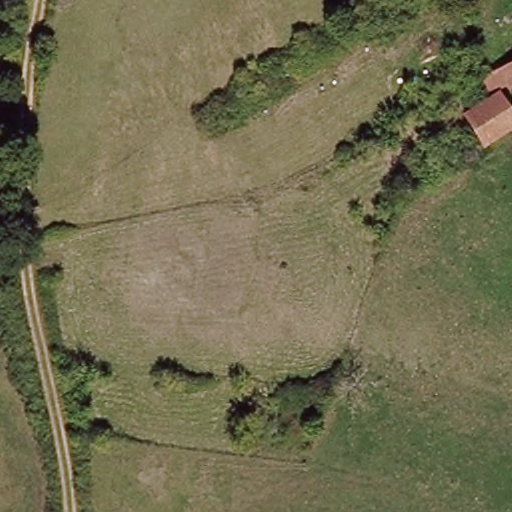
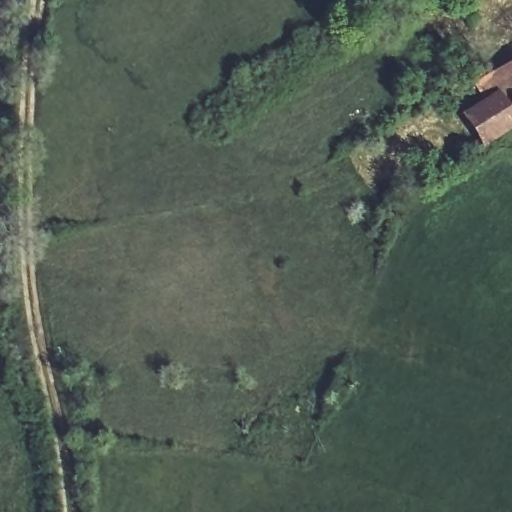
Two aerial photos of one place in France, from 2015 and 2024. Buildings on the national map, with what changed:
unchanged [(506,88),(485,101),(475,86),(512,65),(512,89),(510,90),(506,88)]
unchanged [(512,119),(512,135),(486,151),(467,119),(500,99),(512,119)]

